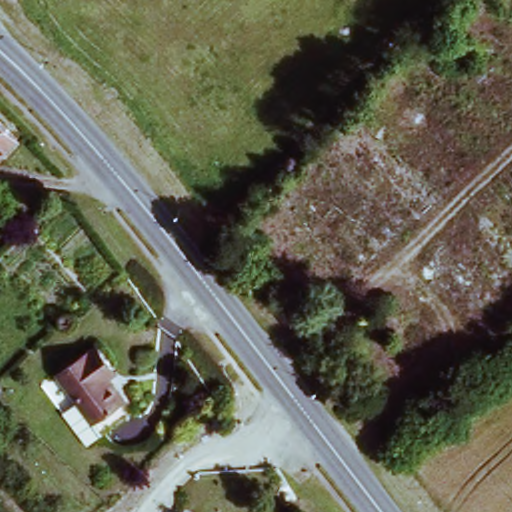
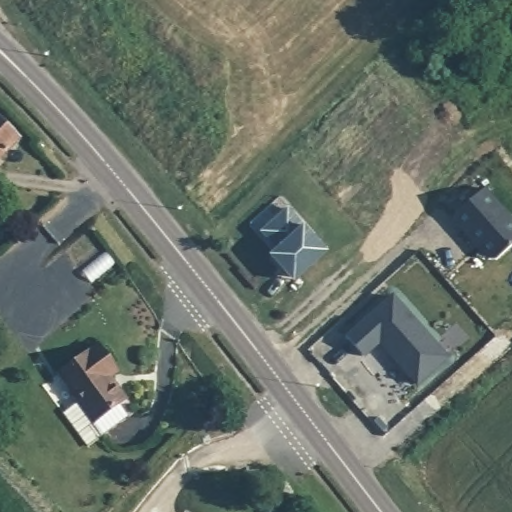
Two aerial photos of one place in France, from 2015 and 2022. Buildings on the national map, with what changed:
unchanged [(0,149),(0,119),(15,136),(0,149)]
new [(452,222),(483,193),(512,224),(512,249),(496,264),(489,263),(477,251),(464,236),(452,222)]
new [(272,257),(279,252),(264,233),(290,212),(326,257),(295,281),(292,284),(272,257)]
new [(353,337),(402,300),(452,364),(421,388),(386,344),(369,357),(353,337)]
unchanged [(84,446),(60,413),(77,401),(57,375),(96,347),(108,364),(102,369),(123,400),(132,412),(101,433),(84,446)]

